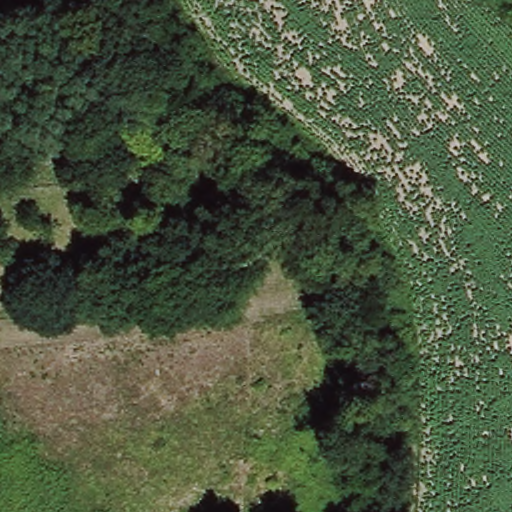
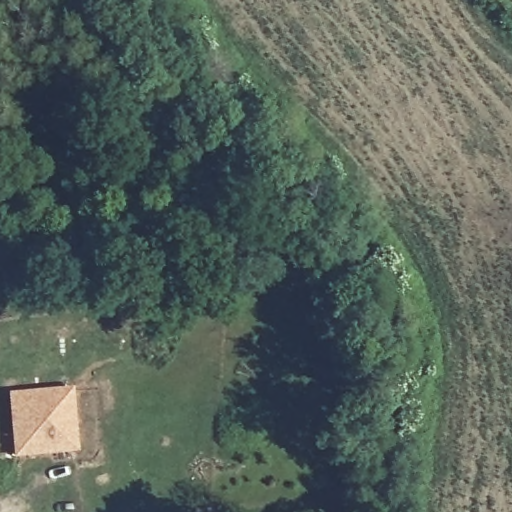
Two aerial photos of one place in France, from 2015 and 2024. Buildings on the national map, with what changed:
new [(71,387),(80,452),(13,458),(6,392),(71,387)]

